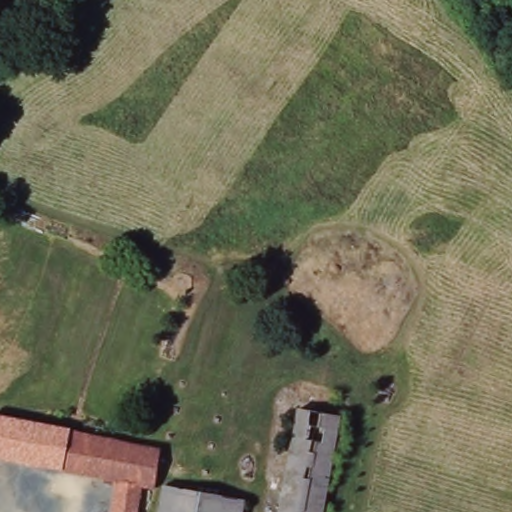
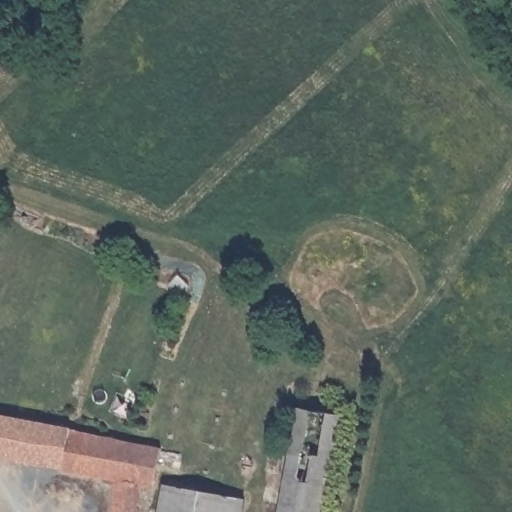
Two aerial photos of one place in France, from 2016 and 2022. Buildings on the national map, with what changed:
unchanged [(296,409),(336,416),(322,512),(281,512),(296,409)]
unchanged [(117,481),(58,468),(58,464),(0,453),(0,414),(113,436),(147,442),(164,447),(157,485),(145,483),(141,512),(113,512),(117,481)]
unchanged [(244,512),(160,512),(163,498),(244,512)]

